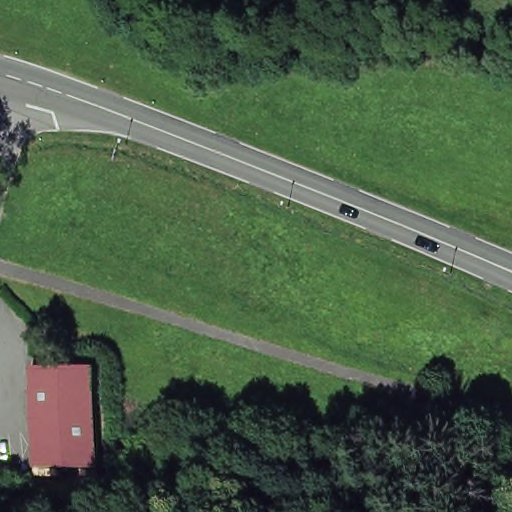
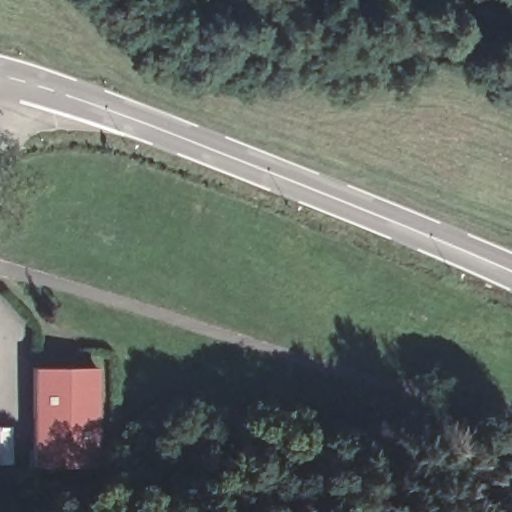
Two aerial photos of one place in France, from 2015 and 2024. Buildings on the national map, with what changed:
unchanged [(101,364),(99,464),(36,463),(39,363),(101,364)]

